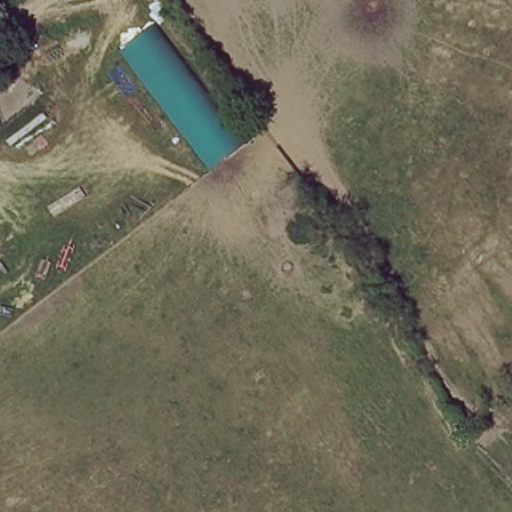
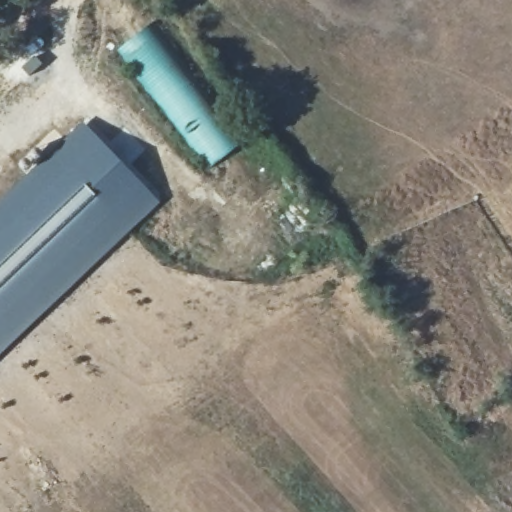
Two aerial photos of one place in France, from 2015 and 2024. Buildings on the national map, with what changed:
unchanged [(215,168),(129,48),(160,25),(246,145),(215,168)]
new [(163,202),(0,355),(0,201),(84,122),(163,202)]

